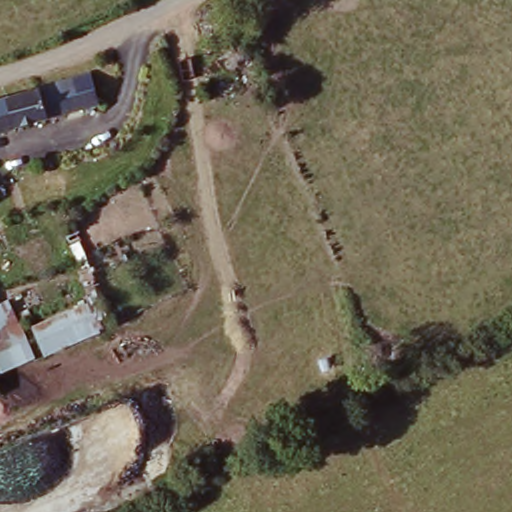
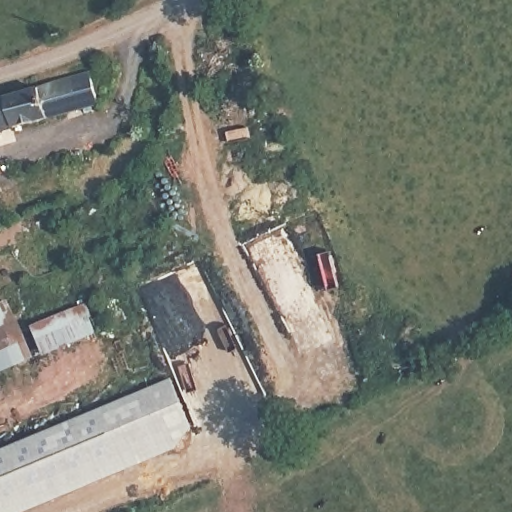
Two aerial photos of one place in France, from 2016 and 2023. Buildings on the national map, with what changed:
unchanged [(94,81),(102,112),(0,138),(0,104),(94,81)]
unchanged [(12,297),(39,359),(5,375),(0,365),(0,303),(12,297)]
unchanged [(89,312),(100,334),(39,359),(30,339),(89,312)]
new [(178,449),(32,512),(0,512),(0,450),(172,377),(193,428),(178,449)]

